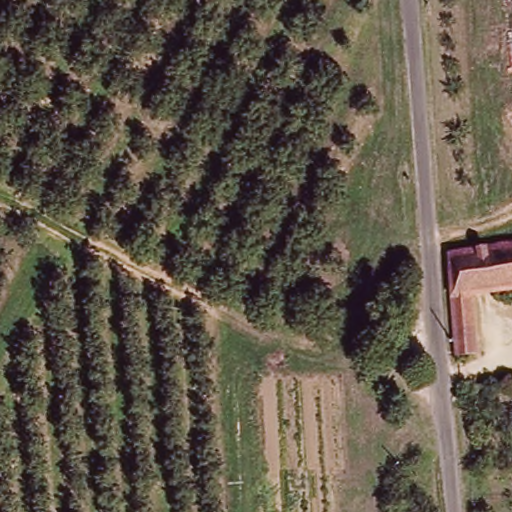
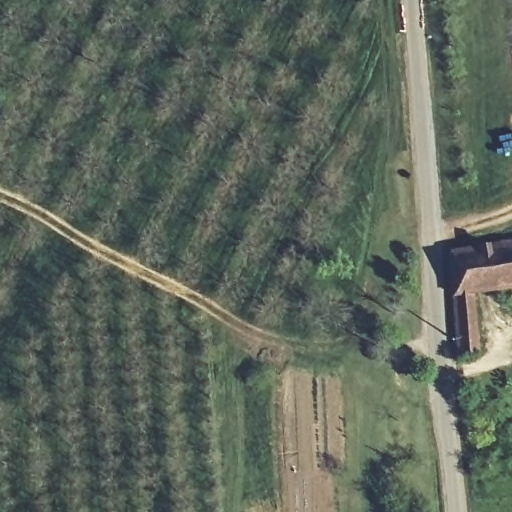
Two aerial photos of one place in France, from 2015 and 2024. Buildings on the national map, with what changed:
unchanged [(478,357),(453,357),(444,252),(512,240),(512,284),(477,291),(478,357)]

